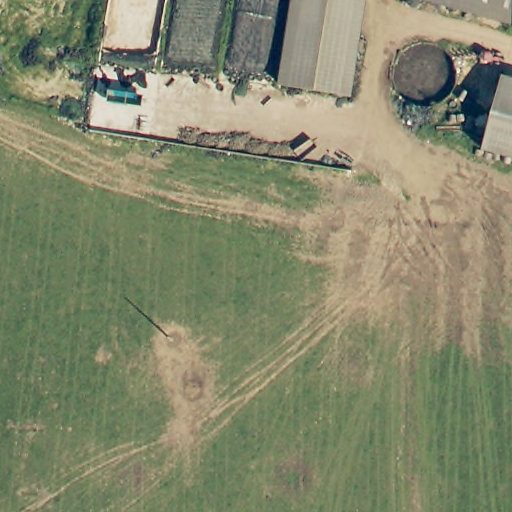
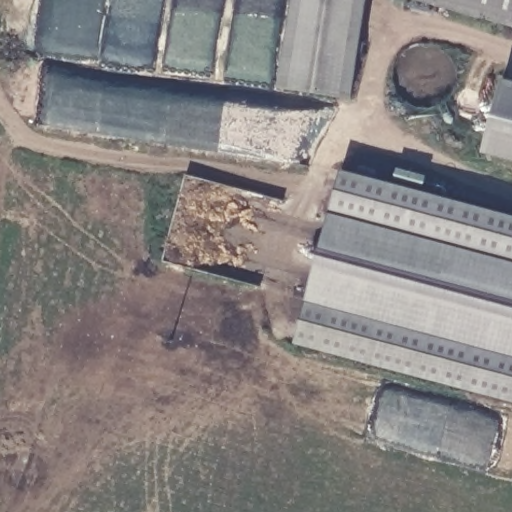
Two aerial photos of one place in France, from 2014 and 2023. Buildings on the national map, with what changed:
unchanged [(367,0),(350,94),(281,82),(295,0),(367,0)]
unchanged [(512,0),(512,27),(416,0),(512,0)]
unchanged [(505,76),(512,78),(512,156),(484,148),(505,76)]
new [(512,214),(512,401),(296,343),(343,169),(512,214)]

